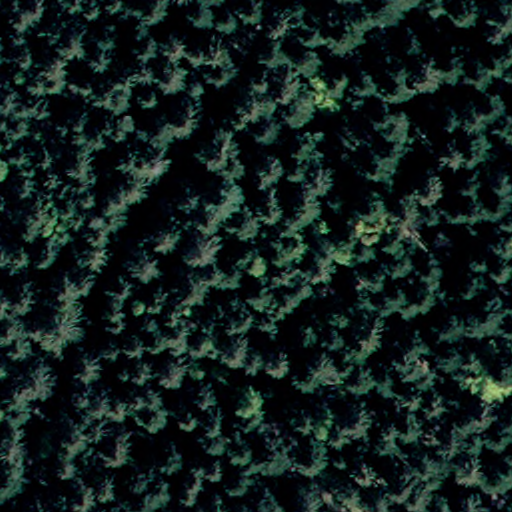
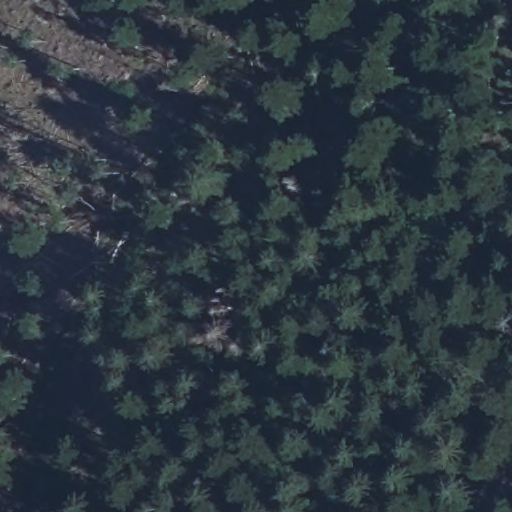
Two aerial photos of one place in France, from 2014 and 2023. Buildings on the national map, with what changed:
[]

